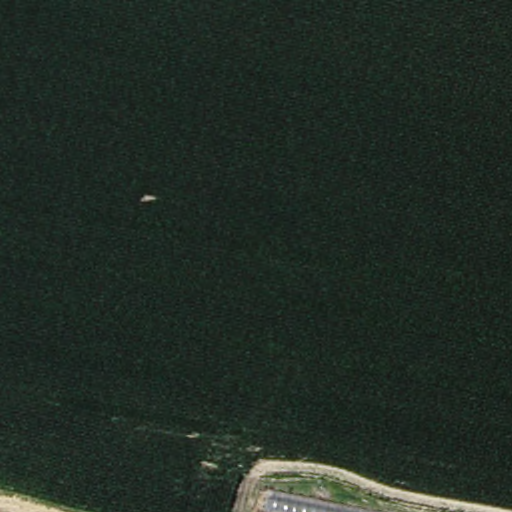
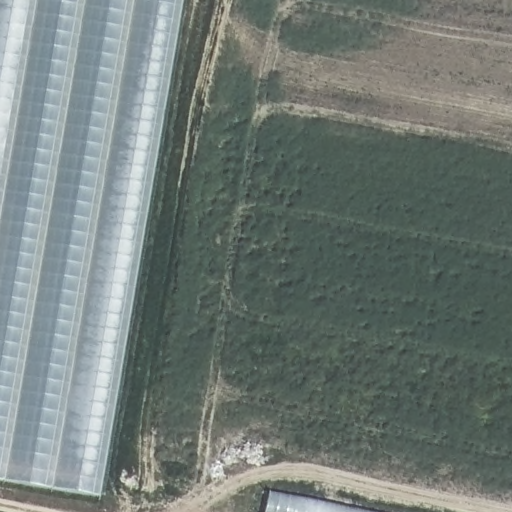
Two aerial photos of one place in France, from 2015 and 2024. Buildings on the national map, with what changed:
new [(97,495),(0,480),(0,0),(178,0),(97,495)]
unchanged [(269,512),(273,490),(383,512),(269,512)]

